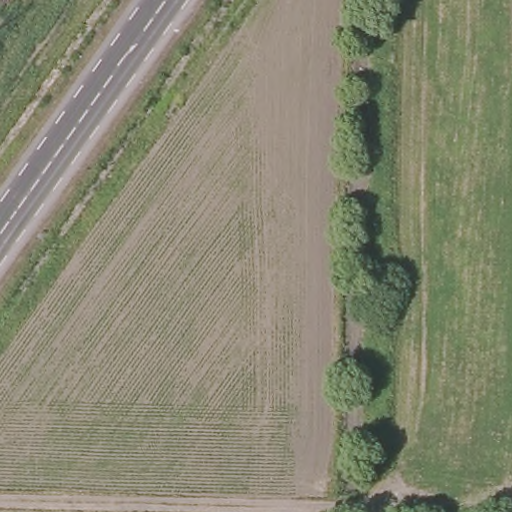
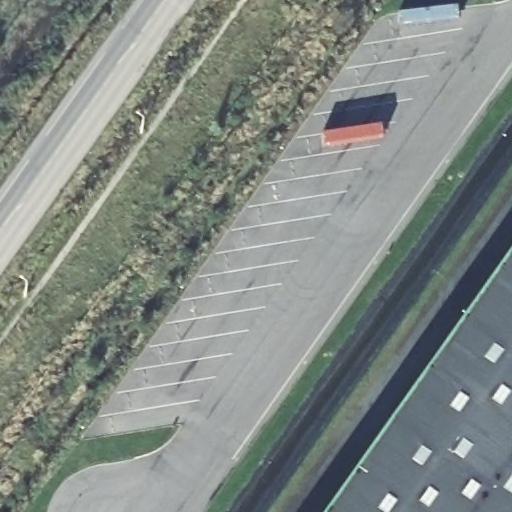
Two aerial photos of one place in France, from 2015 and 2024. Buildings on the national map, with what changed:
new [(512,272),(512,512),(341,512),(512,272)]

